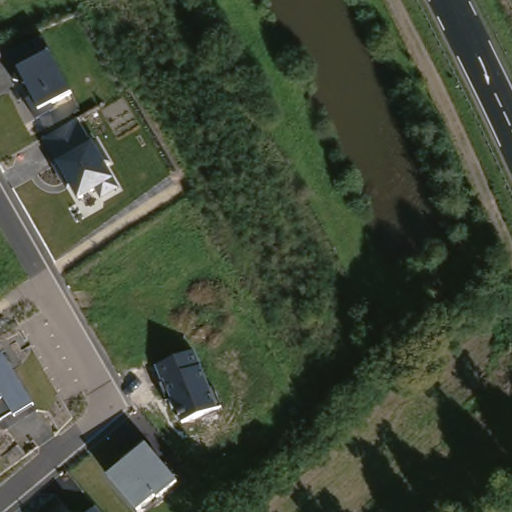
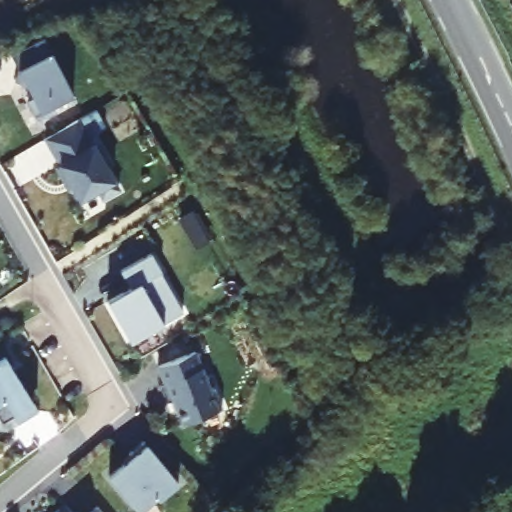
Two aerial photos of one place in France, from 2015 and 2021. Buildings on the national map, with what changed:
unchanged [(73,94),(54,104),(57,110),(38,120),(26,100),(34,96),(11,51),(44,36),(73,94)]
unchanged [(91,141),(97,139),(113,165),(109,169),(121,191),(104,200),(98,190),(81,200),(73,187),(69,190),(54,166),(58,162),(45,140),(78,120),(91,141)]
new [(129,290),(119,272),(149,255),(160,274),(159,274),(181,314),(129,344),(106,303),(129,290)]
unchanged [(210,388),(214,386),(221,407),(181,422),(172,400),(170,401),(156,367),(196,350),(210,388)]
unchanged [(16,418),(14,415),(2,422),(0,419),(0,358),(5,355),(35,408),(16,418)]
unchanged [(178,484),(141,512),(140,512),(107,472),(146,444),(178,484)]
unchanged [(70,512),(56,512),(64,506),(70,512)]
unchanged [(94,512),(84,512),(90,508),(94,512)]

